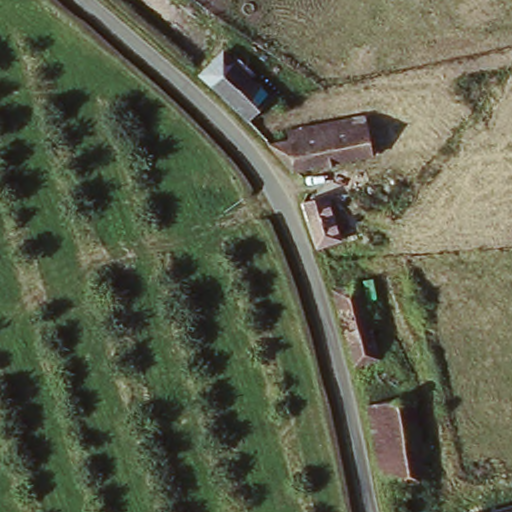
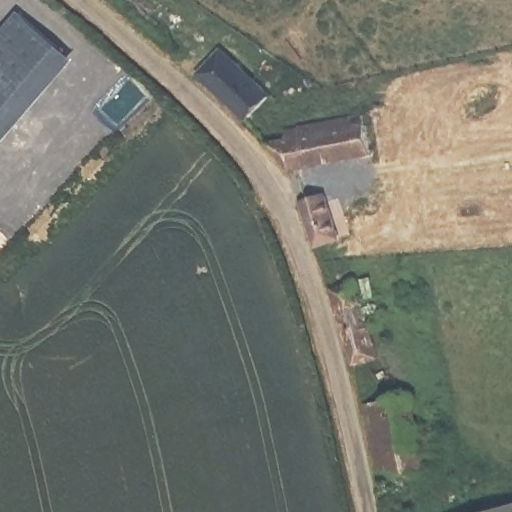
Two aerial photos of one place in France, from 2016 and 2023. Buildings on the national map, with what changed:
new [(0,33),(0,0),(19,0),(25,6),(0,33)]
new [(0,149),(0,38),(18,18),(71,66),(0,149)]
unchanged [(269,102),(275,109),(257,128),(212,86),(199,74),(229,46),(239,56),(278,93),(269,102)]
unchanged [(280,136),(279,126),(362,113),(369,154),(289,171),(285,165),(278,156),(262,139),(280,136)]
unchanged [(324,190),(339,234),(310,242),(295,199),(324,190)]
unchanged [(350,277),(356,275),(376,351),(349,359),(344,335),(327,284),(350,277)]
unchanged [(365,403),(412,392),(429,477),(385,487),(365,403)]
unchanged [(512,504),(512,512),(484,512),(512,504)]

